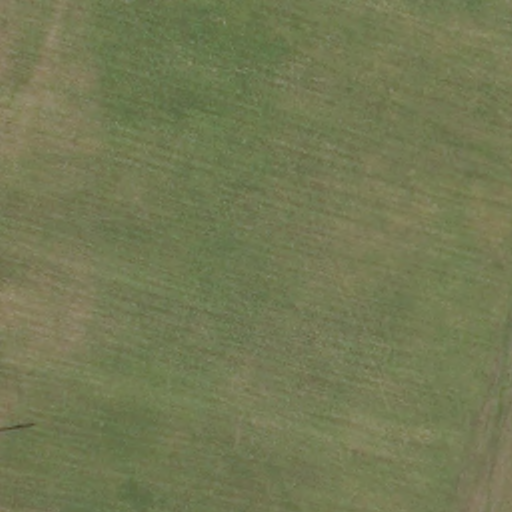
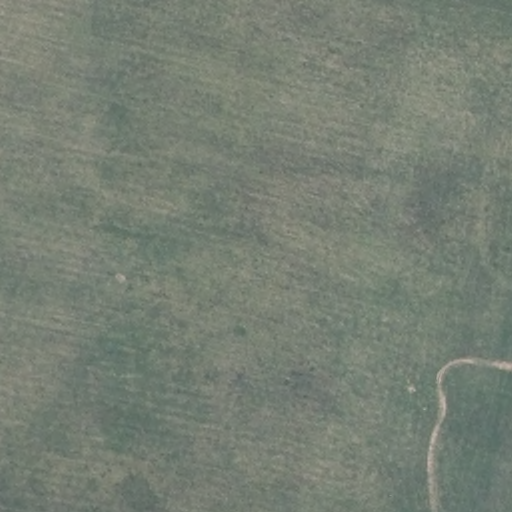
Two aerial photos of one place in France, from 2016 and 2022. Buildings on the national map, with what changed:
[]

